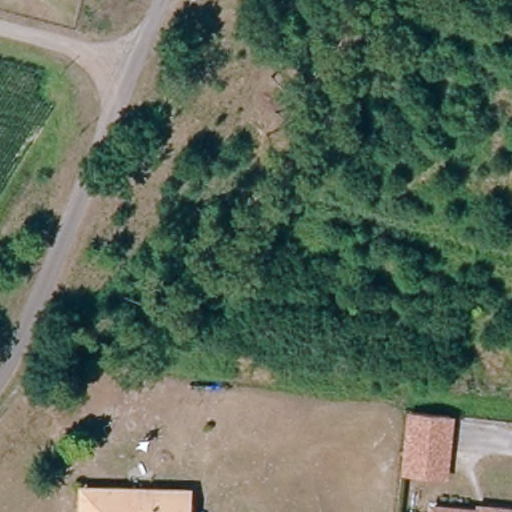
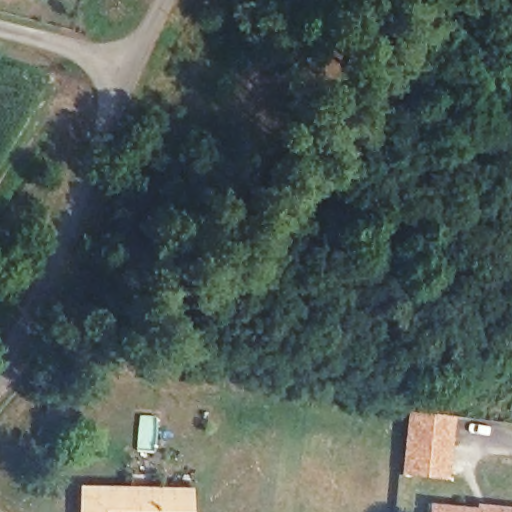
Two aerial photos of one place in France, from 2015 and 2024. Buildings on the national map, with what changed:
unchanged [(436,474),(406,471),(412,411),(416,411),(449,415),(446,452),(444,474),(436,474)]
unchanged [(82,512),(82,490),(188,494),(188,512),(82,512)]
unchanged [(481,511),(482,507),(490,508),(512,510),(512,512),(439,512),(439,506),(481,511)]

